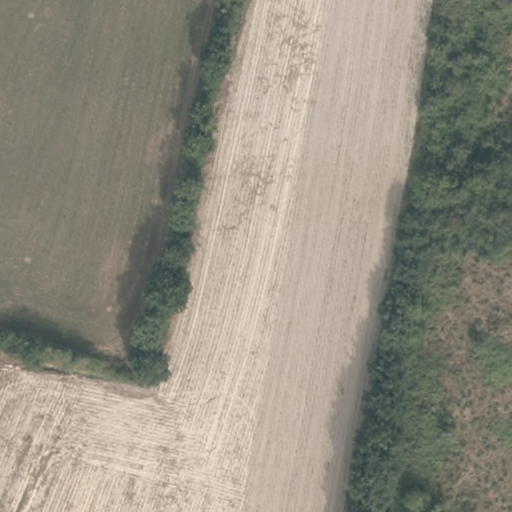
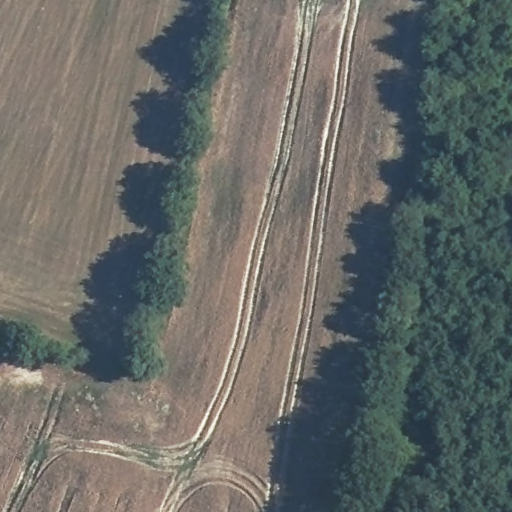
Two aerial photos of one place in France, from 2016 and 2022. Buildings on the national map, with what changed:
[]

